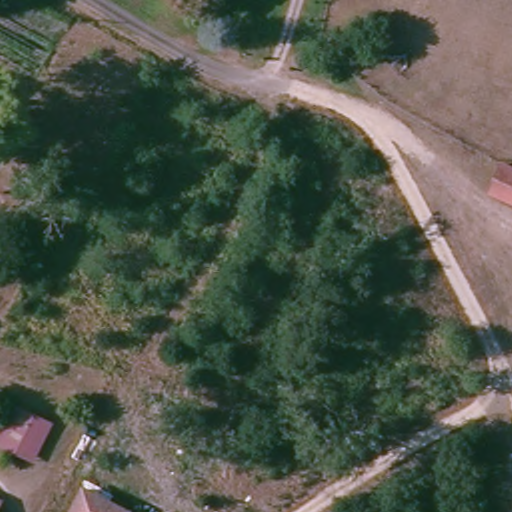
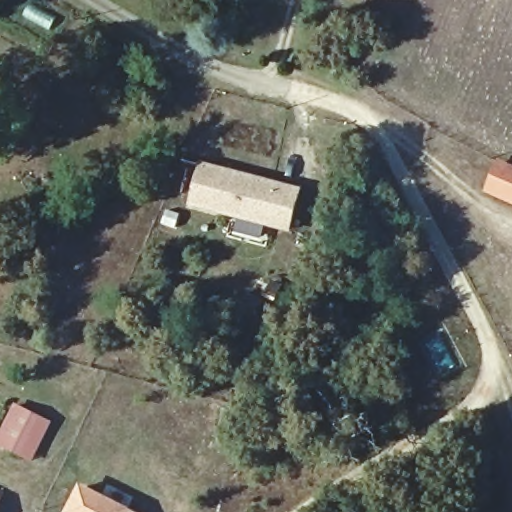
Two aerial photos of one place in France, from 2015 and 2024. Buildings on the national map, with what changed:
new [(302,189),(291,232),(188,206),(200,162),(302,189)]
unchanged [(512,170),(512,202),(492,195),(501,166),(512,170)]
unchanged [(14,403),(45,421),(28,455),(0,440),(0,432),(14,403)]
new [(129,508),(136,512),(65,512),(80,484),(129,508)]
demolished [(136,510),(135,512),(75,512),(86,485),(136,510)]
unchanged [(5,502),(1,512),(0,512),(0,500),(5,502)]

